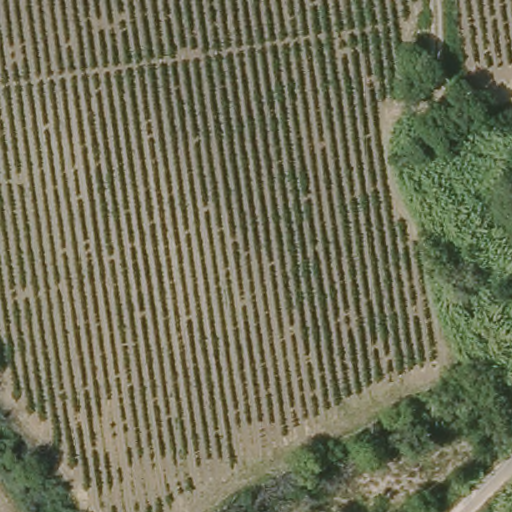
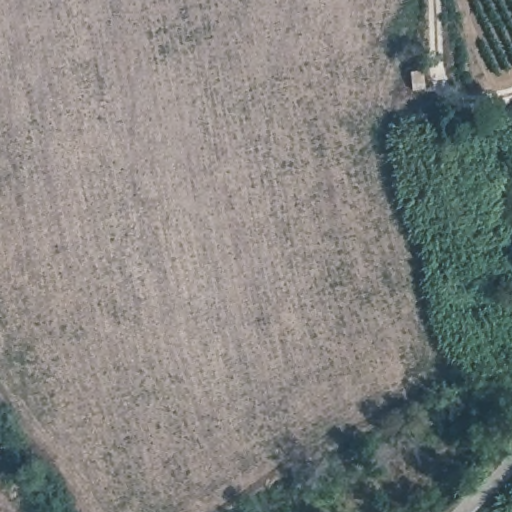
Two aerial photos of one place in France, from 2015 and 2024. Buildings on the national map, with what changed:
unchanged [(422,62),(424,84),(411,86),(409,64),(422,62)]

